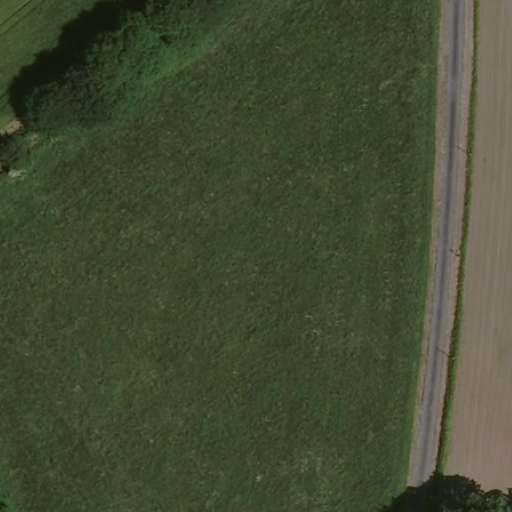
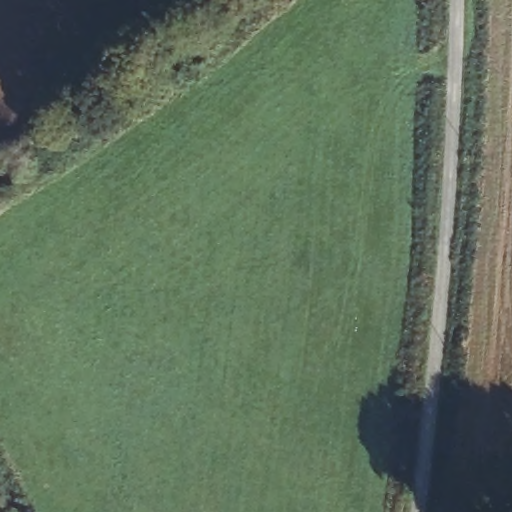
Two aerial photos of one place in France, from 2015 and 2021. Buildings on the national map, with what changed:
[]

